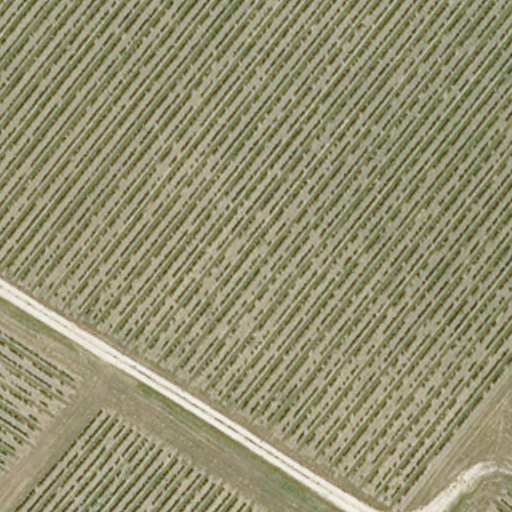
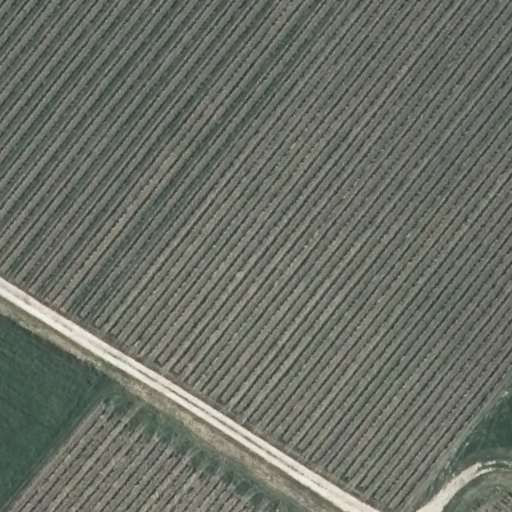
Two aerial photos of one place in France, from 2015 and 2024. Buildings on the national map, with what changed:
[]

